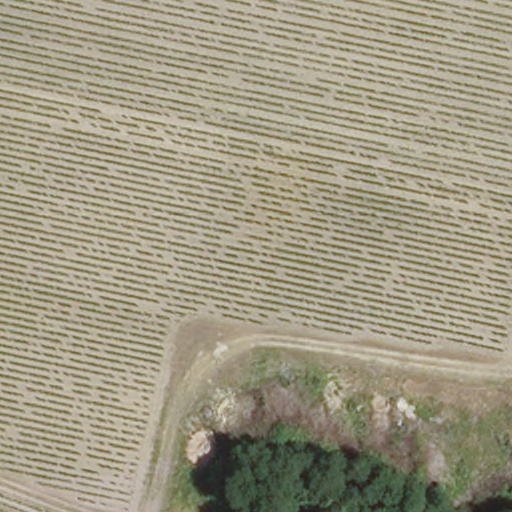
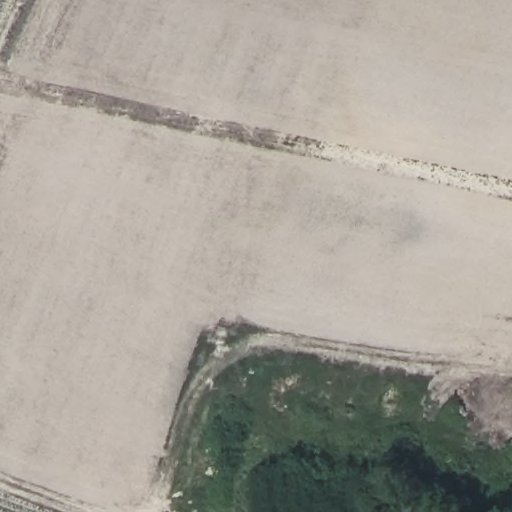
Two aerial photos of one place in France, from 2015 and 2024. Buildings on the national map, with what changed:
[]

